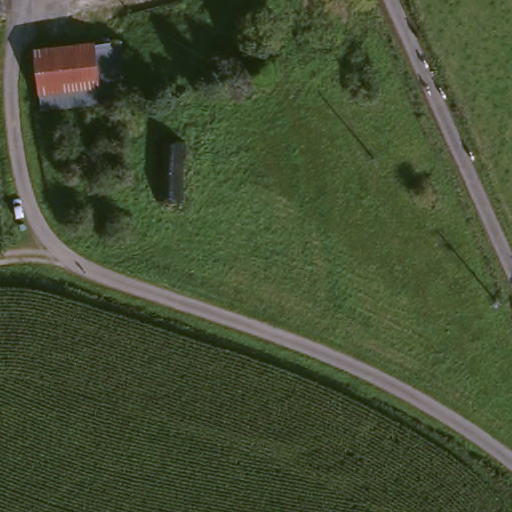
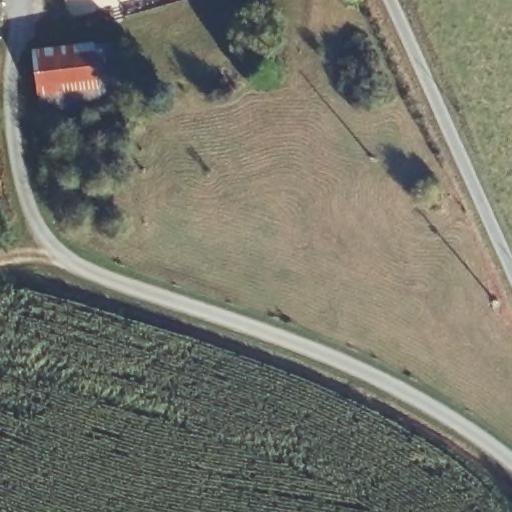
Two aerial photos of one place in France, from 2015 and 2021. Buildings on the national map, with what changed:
unchanged [(123,91),(42,95),(38,43),(119,39),(123,91)]

